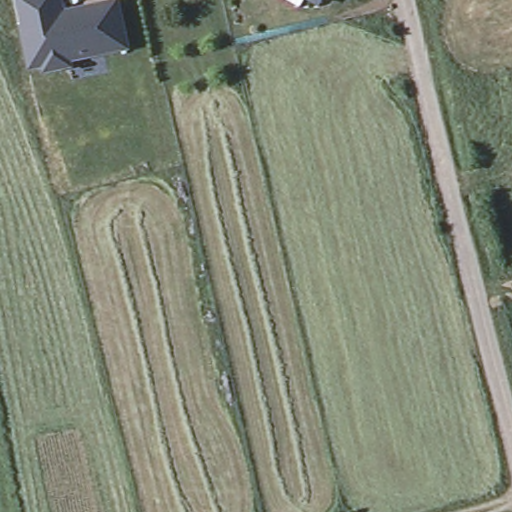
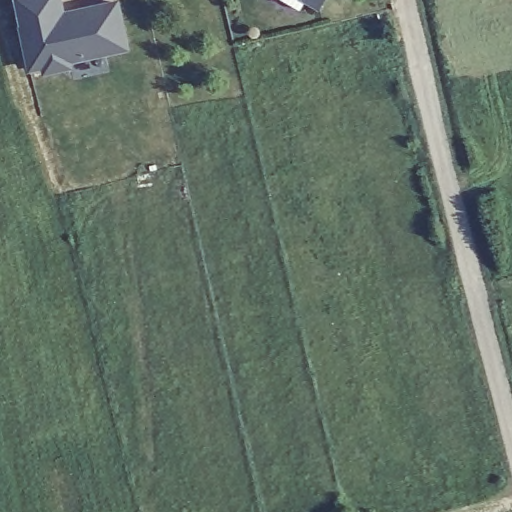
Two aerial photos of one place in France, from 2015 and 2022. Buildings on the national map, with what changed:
unchanged [(20,0),(65,0),(67,10),(78,7),(112,0),(122,0),(131,42),(73,55),(74,61),(54,65),(51,66),(50,60),(33,63),(24,20),(20,0)]

